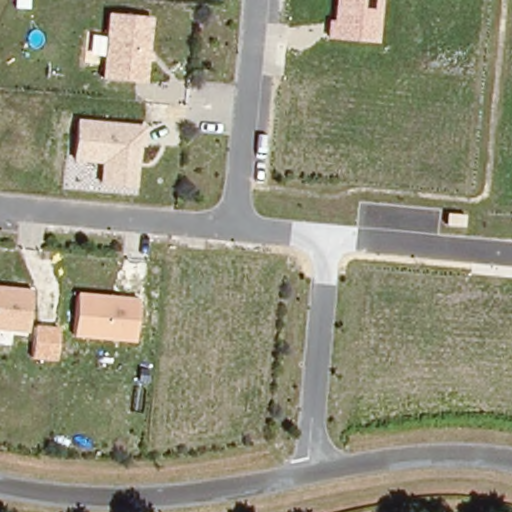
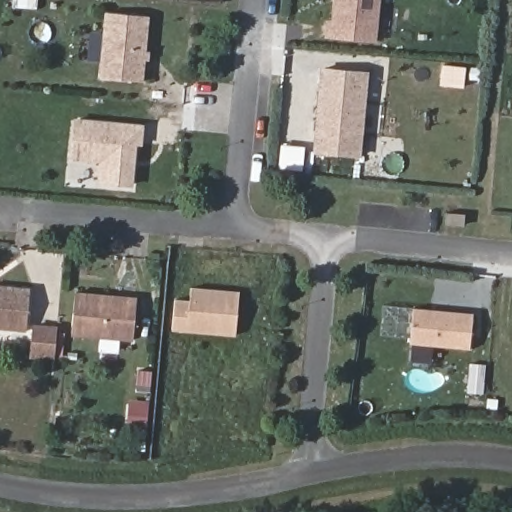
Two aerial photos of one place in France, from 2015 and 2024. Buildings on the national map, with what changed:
unchanged [(377,43),(320,37),(323,19),(329,19),(331,0),(381,0),(377,43)]
unchanged [(143,83),(98,79),(104,13),(149,17),(143,83)]
new [(364,73),(357,155),(313,151),(319,69),(364,73)]
unchanged [(75,119),(141,125),(136,186),(95,183),(99,163),(71,160),(75,119)]
unchanged [(0,331),(0,286),(30,289),(25,334),(0,331)]
new [(190,302),(192,288),(240,292),(237,335),(173,330),(175,301),(190,302)]
unchanged [(136,339),(75,338),(75,291),(138,297),(136,339)]
new [(413,307),(473,312),(469,346),(410,341),(413,307)]

